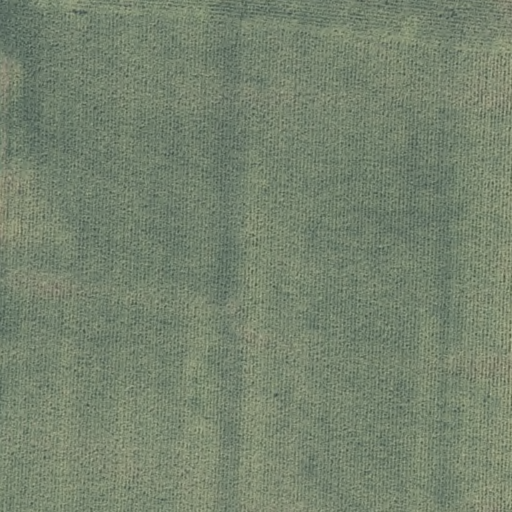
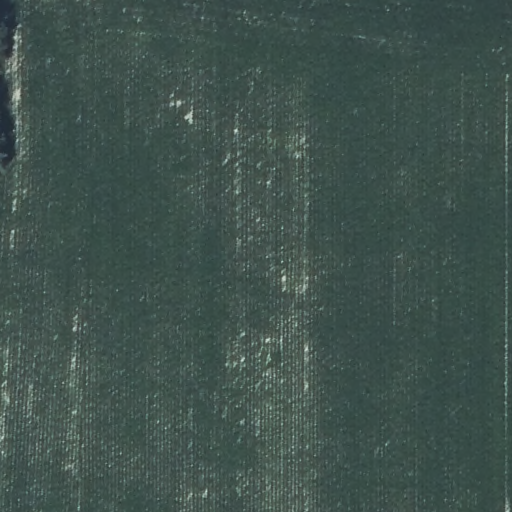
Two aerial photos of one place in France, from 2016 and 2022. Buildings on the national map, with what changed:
[]

